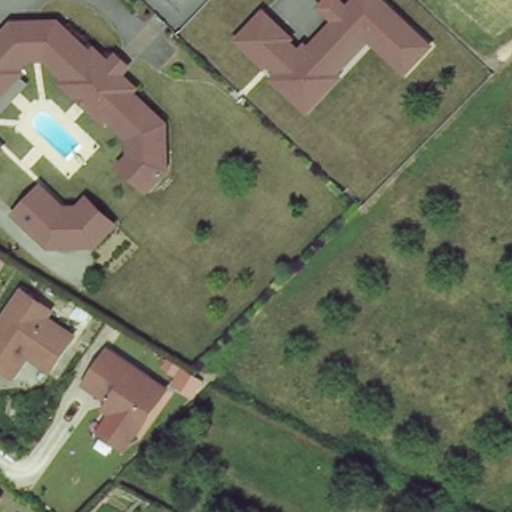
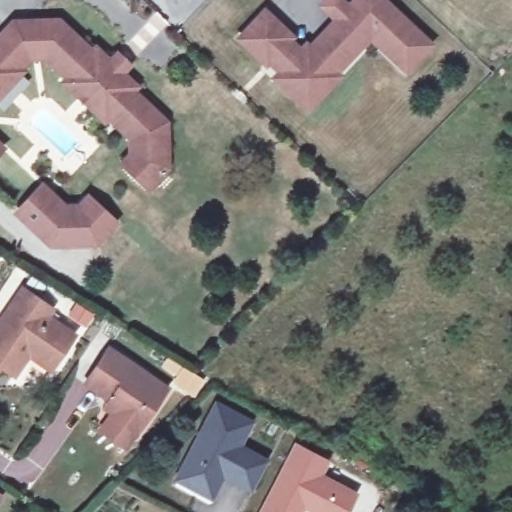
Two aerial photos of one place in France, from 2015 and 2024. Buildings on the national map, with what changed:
unchanged [(428,41),(400,72),(365,33),(332,65),(338,70),(301,110),(265,73),(270,67),(233,35),(262,4),(294,42),(309,42),(329,19),(319,9),(327,0),(345,0),(347,1),(348,0),(385,0),(428,41)]
unchanged [(104,105),(101,108),(60,69),(63,66),(42,45),(23,46),(11,59),(16,63),(0,79),(0,19),(3,16),(48,15),(81,46),(85,42),(100,56),(104,52),(115,63),(111,67),(126,81),(123,85),(156,116),(161,160),(142,179),(119,157),(128,147),(128,127),(104,105)]
unchanged [(34,188),(58,211),(80,208),(89,197),(113,220),(94,240),(45,243),(12,212),(34,188)]
unchanged [(21,350),(6,371),(0,367),(0,305),(14,285),(44,305),(39,312),(66,331),(48,357),(43,365),(21,350)]
unchanged [(102,397),(77,380),(100,345),(159,385),(130,427),(104,409),(97,404),(102,397)]
new [(167,356),(205,379),(194,397),(172,382),(176,376),(161,367),(167,356)]
new [(214,397),(254,418),(243,442),(270,457),(251,493),(223,479),(211,501),(172,480),(214,397)]
new [(304,512),(257,512),(294,442),(330,462),(324,475),(358,492),(348,512),(307,512),(305,511),(304,512)]

